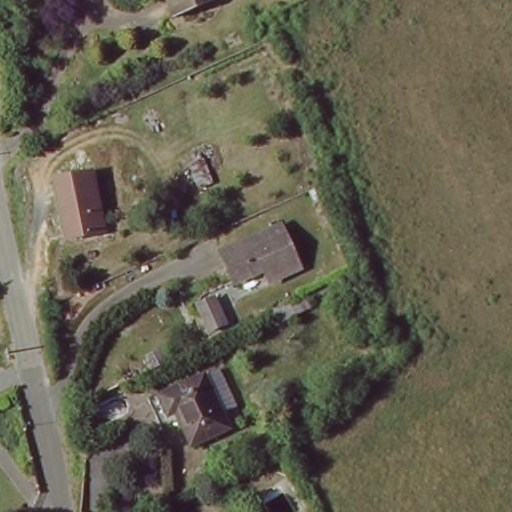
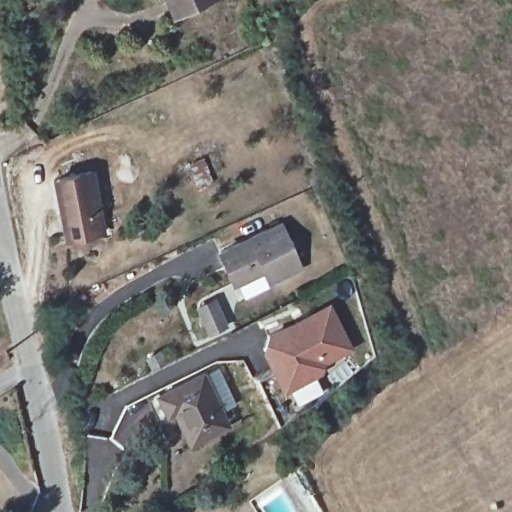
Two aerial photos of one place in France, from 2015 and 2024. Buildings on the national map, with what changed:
unchanged [(161,0),(203,0),(170,19),(161,0)]
unchanged [(90,171),(95,194),(101,226),(67,235),(62,208),(56,180),(90,171)]
unchanged [(280,216),(286,228),(300,257),(301,258),(268,275),(268,274),(261,262),(230,278),(221,260),(215,249),(280,216)]
demolished [(298,291),(306,307),(273,326),(265,311),(298,291)]
new [(266,338),(324,304),(347,344),(321,359),(319,370),(285,390),(263,352),(266,338)]
unchanged [(183,450),(182,448),(165,418),(158,421),(150,407),(193,383),(212,374),(233,412),(214,423),(218,430),(183,450)]

